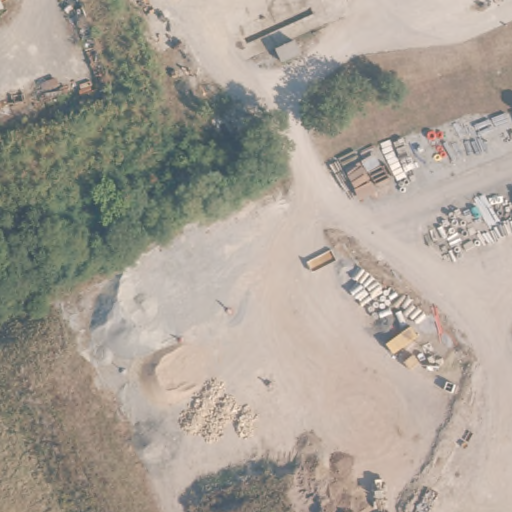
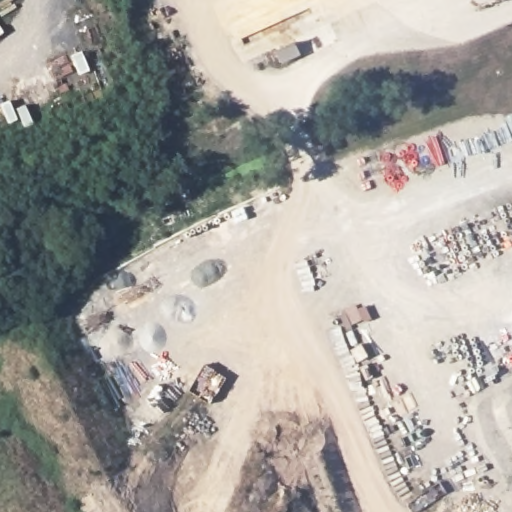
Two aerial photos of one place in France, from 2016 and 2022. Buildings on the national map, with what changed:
unchanged [(295,52),(275,60),(270,47),(289,38),(295,52)]

